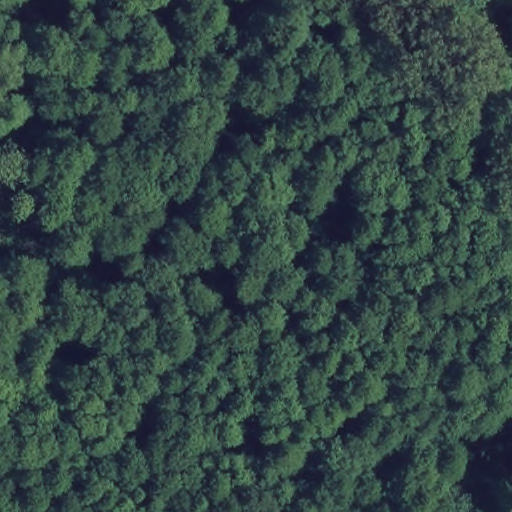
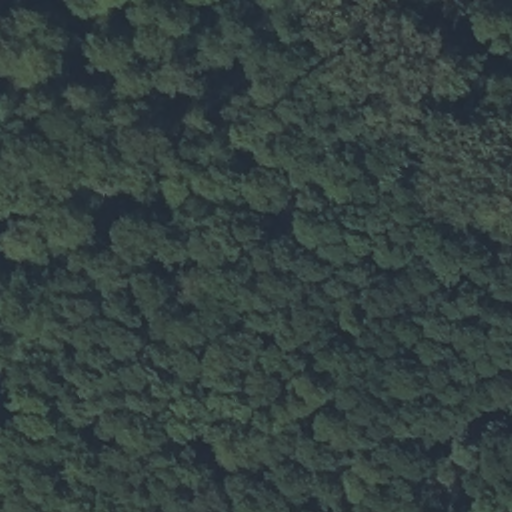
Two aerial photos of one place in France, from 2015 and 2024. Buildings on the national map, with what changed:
[]

